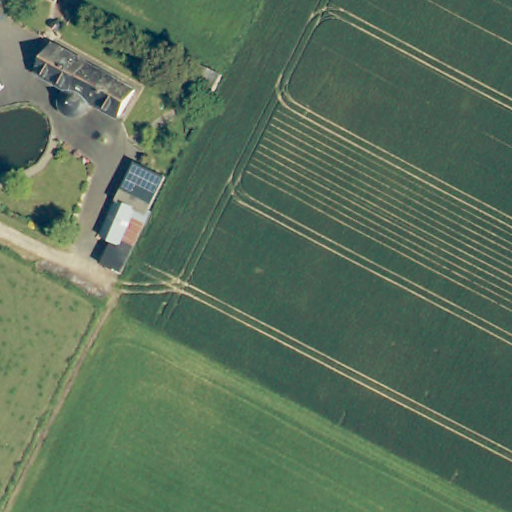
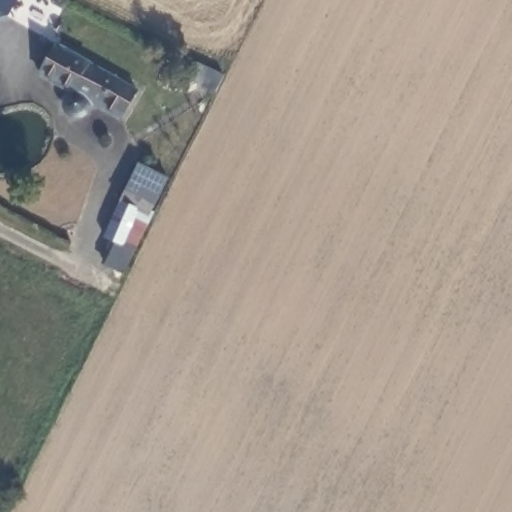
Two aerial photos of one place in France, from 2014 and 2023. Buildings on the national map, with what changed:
unchanged [(137,88),(124,116),(96,103),(91,113),(86,115),(80,115),(74,114),(70,109),(67,102),(72,90),(42,74),(56,46),(137,88)]
unchanged [(218,77),(210,93),(183,78),(190,62),(218,77)]
unchanged [(105,257),(115,238),(104,232),(141,158),(171,173),(152,211),(123,267),(105,257)]

